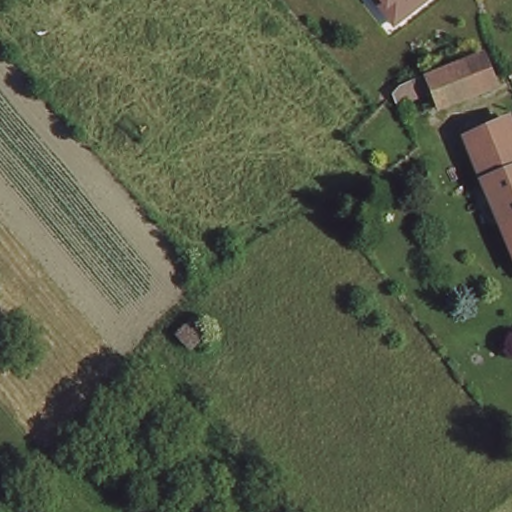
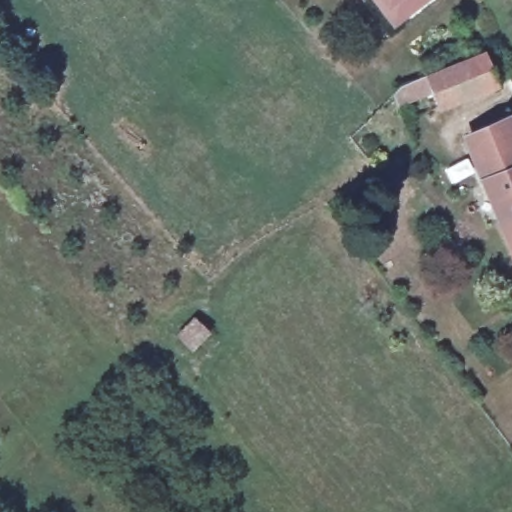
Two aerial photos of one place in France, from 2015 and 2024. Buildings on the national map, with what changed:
unchanged [(395,18),(378,0),(415,0),(395,18)]
unchanged [(492,84),(438,109),(427,80),(481,59),(492,84)]
unchanged [(423,93),(399,103),(394,93),(420,83),(423,93)]
unchanged [(512,148),(510,148),(512,153),(512,243),(461,121),(500,104),(512,132),(512,148)]
unchanged [(215,340),(196,358),(174,335),(192,317),(215,340)]

